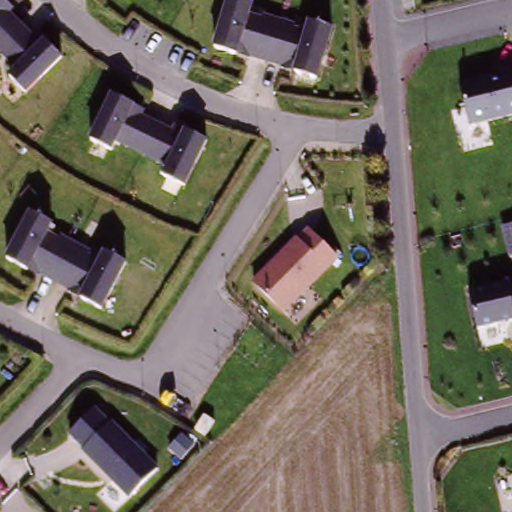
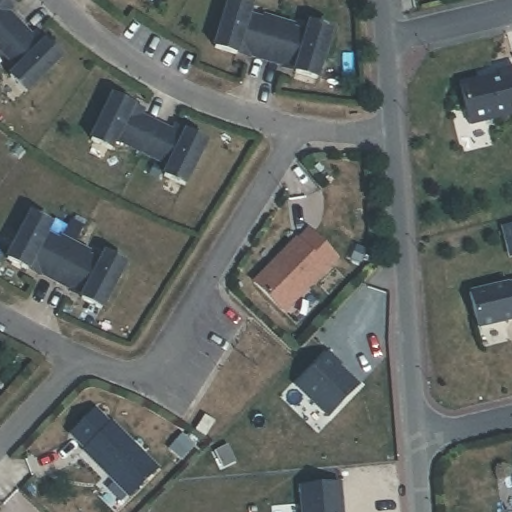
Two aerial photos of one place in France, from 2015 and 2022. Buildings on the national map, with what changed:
unchanged [(5,3),(13,11),(7,16),(20,28),(0,49),(0,0),(2,0),(5,3)]
unchanged [(130,3),(127,0),(133,0),(130,3)]
unchanged [(240,53),(218,45),(234,0),(250,0),(257,2),(252,15),(265,19),(267,15),(282,19),(270,59),(255,54),(254,57),(240,53)]
unchanged [(285,64),(270,59),(282,19),(297,24),(296,27),(310,32),(314,21),(335,27),(320,79),(297,72),(284,68),(285,64)]
unchanged [(30,40),(37,35),(45,43),(60,60),(24,97),(9,80),(17,72),(0,56),(0,49),(20,28),(30,40)]
unchanged [(495,67),(512,65),(512,116),(466,125),(458,81),(496,74),(495,67)]
unchanged [(112,153),(92,143),(114,97),(135,107),(145,112),(144,119),(158,127),(143,156),(117,143),(112,153)]
unchanged [(176,127),(188,133),(209,143),(187,189),(166,179),(171,169),(143,156),(158,127),(173,135),(176,127)]
unchanged [(25,273),(4,262),(29,216),(48,226),(43,237),(57,244),(59,241),(72,248),(52,284),(38,277),(36,278),(25,273)]
unchanged [(306,232),(335,260),(285,312),(255,283),(306,232)]
unchanged [(67,293),(52,284),(72,248),(87,256),(85,259),(98,267),(104,256),(123,266),(98,313),(79,302),(66,296),(67,293)]
unchanged [(512,318),(475,327),(465,289),(512,280),(512,318)]
new [(295,386),(329,351),(342,365),(340,366),(360,385),(327,418),(295,386)]
unchanged [(131,497),(84,450),(85,448),(70,433),(95,408),(110,423),(112,421),(160,468),(131,497)]
unchanged [(216,421),(206,436),(197,429),(207,415),(216,421)]
new [(340,483),(343,512),(302,512),(300,488),(340,483)]

